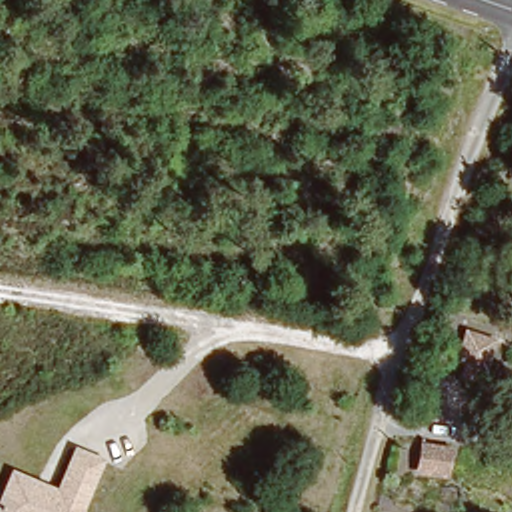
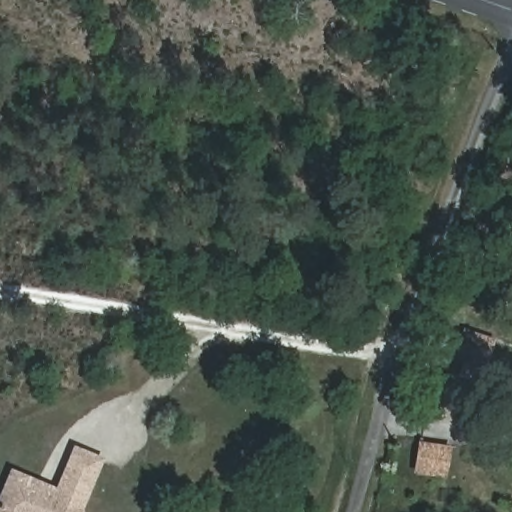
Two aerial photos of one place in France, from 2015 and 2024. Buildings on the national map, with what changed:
unchanged [(483,362),(477,360),(474,370),(456,363),(461,350),(455,350),(463,325),(491,337),(483,362)]
unchanged [(56,486),(77,442),(100,455),(87,493),(76,498),(82,512),(0,512),(0,494),(12,465),(56,486)]
unchanged [(440,473),(416,473),(418,443),(444,446),(440,473)]

